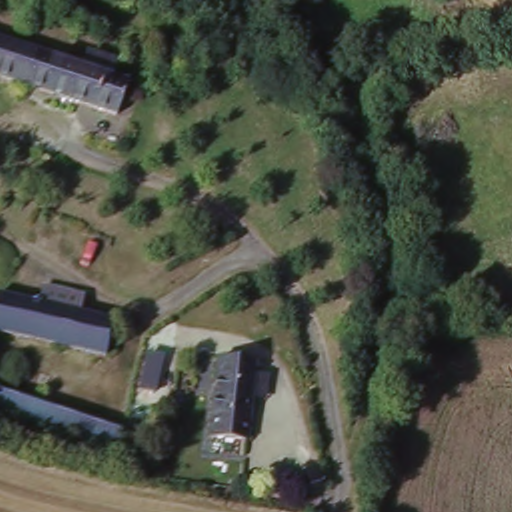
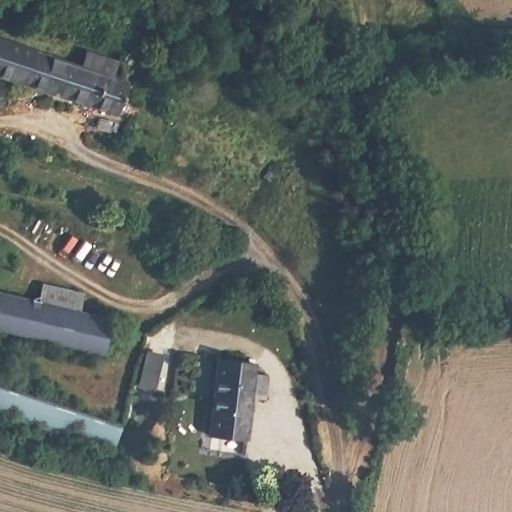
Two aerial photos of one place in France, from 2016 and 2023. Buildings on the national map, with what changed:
unchanged [(82,68),(86,52),(116,62),(112,79),(127,82),(115,115),(0,77),(0,40),(82,68)]
unchanged [(113,321),(105,355),(0,330),(0,294),(113,321)]
unchanged [(252,374),(267,376),(264,401),(250,399),(247,439),(211,436),(218,358),(254,362),(252,374)]
unchanged [(121,427),(113,452),(0,414),(0,387),(121,427)]

